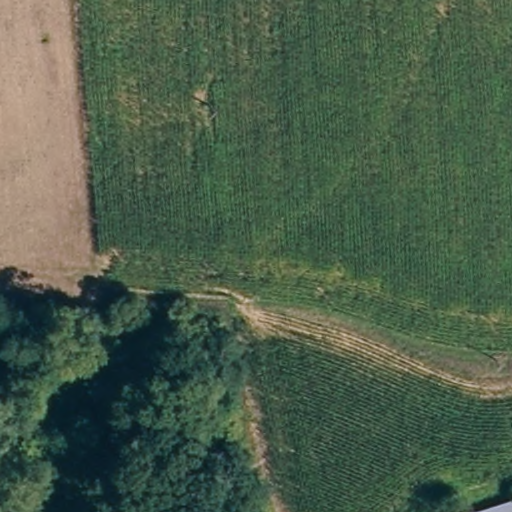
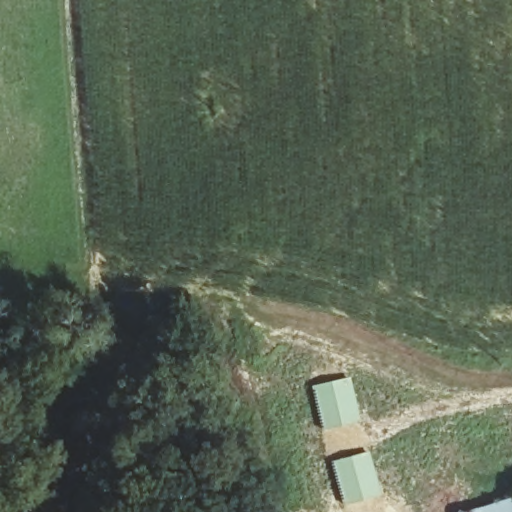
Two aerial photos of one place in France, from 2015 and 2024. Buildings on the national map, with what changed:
new [(350,377),(360,422),(321,430),(311,386),(350,377)]
new [(369,451),(382,496),(341,506),(330,461),(369,451)]
unchanged [(483,512),(512,502),(512,512),(483,512)]

